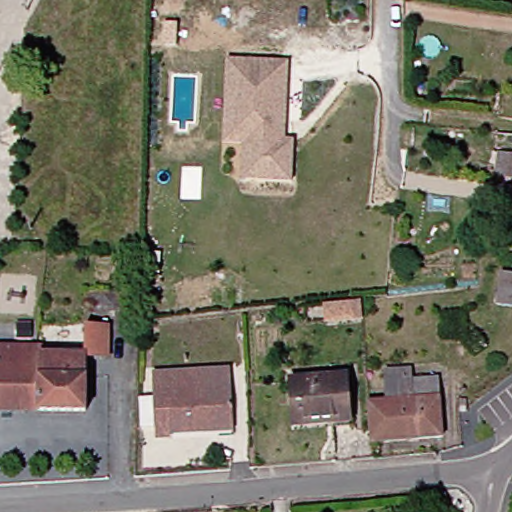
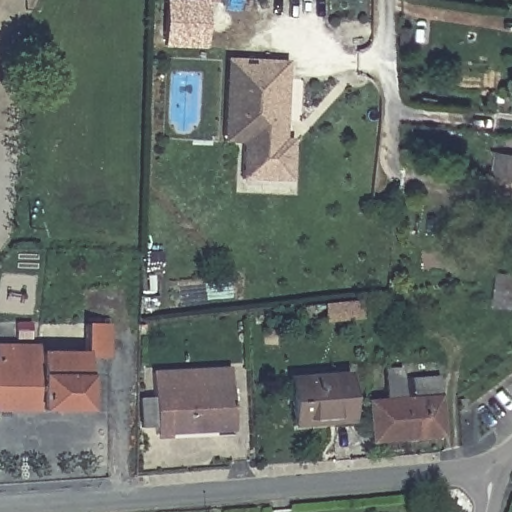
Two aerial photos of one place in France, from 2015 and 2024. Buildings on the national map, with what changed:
new [(206,49),(163,48),(164,0),(207,0),(206,49)]
unchanged [(237,147),(222,147),(224,64),(239,64),(237,147)]
unchanged [(292,142),(292,184),(242,183),(242,147),(237,147),(239,64),(285,65),(284,124),(284,142),(292,142)]
unchanged [(502,149),(512,150),(512,174),(500,173),(502,156),(502,149)]
unchanged [(512,272),(512,306),(493,304),(497,271),(512,272)]
unchanged [(360,292),(362,308),(325,311),(324,295),(360,292)]
unchanged [(47,362),(47,353),(93,352),(92,331),(121,331),(120,368),(97,367),(95,415),(35,414),(37,362),(47,362)]
unchanged [(0,414),(0,363),(37,362),(35,414),(0,414)]
unchanged [(400,401),(399,368),(416,366),(416,375),(427,374),(427,379),(453,378),(455,437),(377,441),(372,403),(400,401)]
unchanged [(160,368),(240,367),(243,432),(162,434),(162,426),(145,426),(146,402),(160,401),(160,368)]
demolished [(139,370),(139,393),(124,394),(124,369),(139,370)]
unchanged [(360,373),(363,422),(305,424),(304,376),(360,373)]

